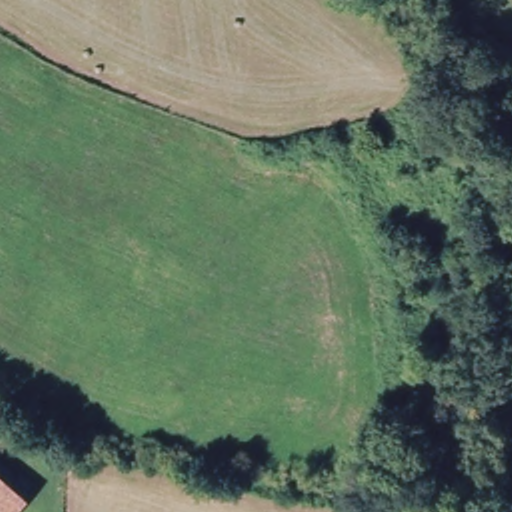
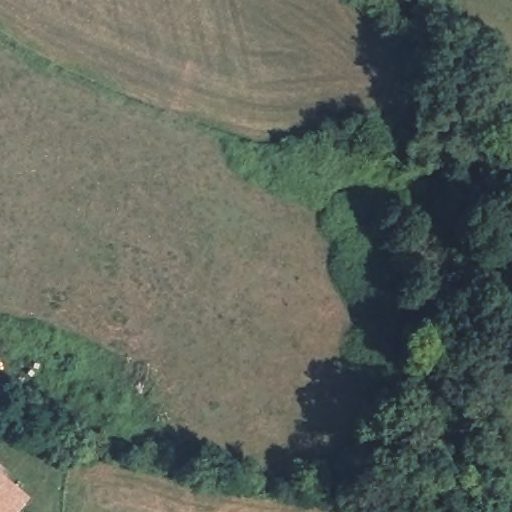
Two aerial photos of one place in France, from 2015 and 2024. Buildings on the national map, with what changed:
unchanged [(22,502),(14,512),(0,512),(0,483),(22,502)]

